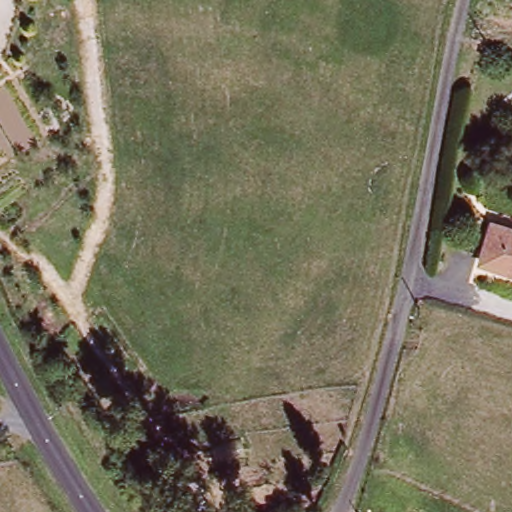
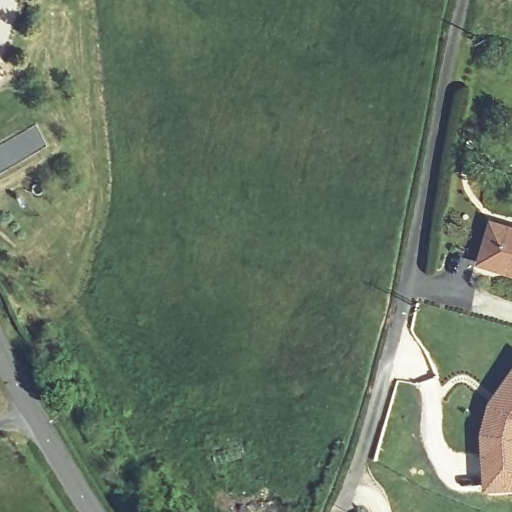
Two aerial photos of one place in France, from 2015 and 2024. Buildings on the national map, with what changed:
unchanged [(481,262),(491,224),(512,229),(512,270),(481,262)]
new [(487,492),(483,432),(490,403),(512,373),(512,490),(487,492)]

